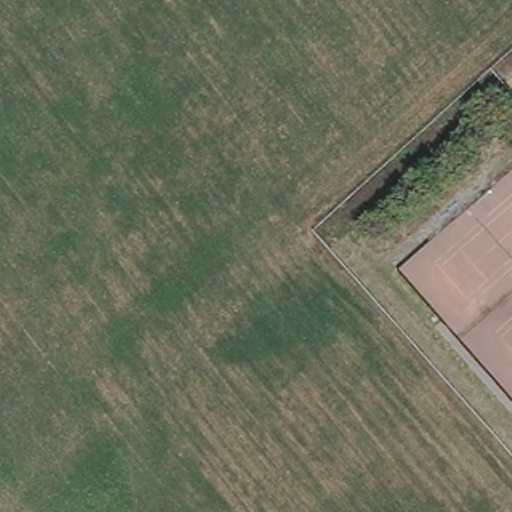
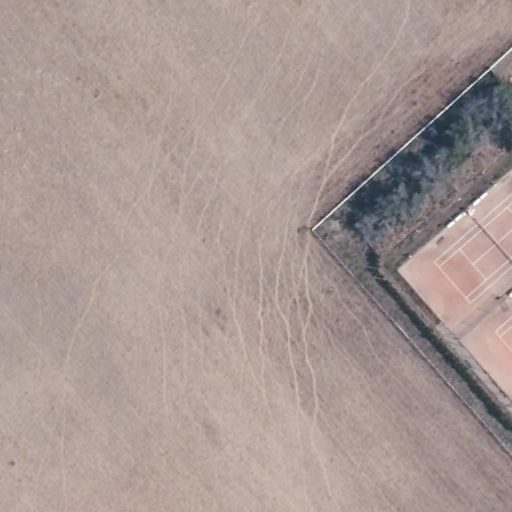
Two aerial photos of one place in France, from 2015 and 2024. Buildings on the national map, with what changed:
[]

